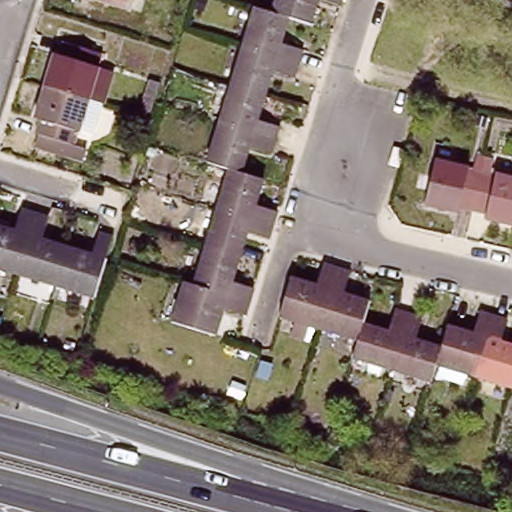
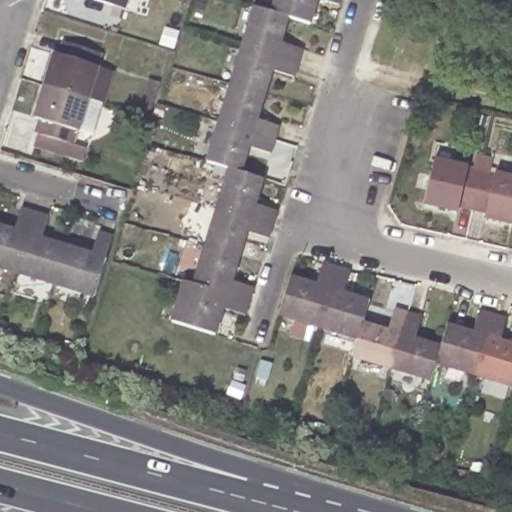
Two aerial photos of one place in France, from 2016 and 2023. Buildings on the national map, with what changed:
unchanged [(91,0),(126,0),(123,10),(91,0)]
unchanged [(313,0),(305,25),(285,19),(266,13),(270,0),(313,0)]
unchanged [(313,0),(337,0),(335,7),(313,0)]
unchanged [(266,13),(285,19),(277,44),(298,50),(289,78),(269,72),(254,120),(275,127),(266,154),(246,148),(237,173),(224,169),(203,163),(250,9),(266,13)]
unchanged [(99,53),(95,67),(98,68),(90,94),(46,81),(54,55),(59,56),(64,42),(99,53)]
unchanged [(37,142),(41,128),(37,127),(41,113),(36,111),(46,81),(90,94),(105,99),(96,128),(79,123),(77,124),(73,138),(69,151),(37,142)]
unchanged [(468,165),(466,169),(474,171),(478,155),(486,157),(473,211),(458,208),(457,214),(431,207),(442,159),(468,165)]
unchanged [(485,220),(486,215),(473,211),(486,157),(492,159),(488,174),(495,176),(496,171),(512,175),(512,226),(485,220)]
unchanged [(237,173),(259,179),(251,204),(273,211),(264,239),(242,233),(228,280),(250,287),(245,302),(189,285),(224,169),(237,173)]
unchanged [(45,215),(38,236),(87,250),(94,229),(109,233),(90,295),(0,269),(0,225),(10,227),(17,207),(45,215)]
unchanged [(314,283),(320,263),(334,267),(316,327),(278,315),(290,276),(314,283)]
unchanged [(350,272),(344,292),(368,299),(362,321),(356,339),(316,327),(334,267),(350,272)]
unchanged [(245,302),(241,316),(219,309),(210,338),(167,325),(180,283),(189,285),(245,302)]
unchanged [(386,329),(393,307),(407,312),(390,368),(351,356),(356,339),(362,321),(386,329)]
unchanged [(438,346),(433,362),(427,380),(390,368),(407,312),(419,315),(412,337),(438,346)]
unchanged [(470,331),(477,312),(489,316),(470,374),(433,362),(438,346),(446,323),(470,331)]
unchanged [(511,387),(470,374),(489,316),(504,320),(497,338),(512,343),(512,382),(511,387)]
unchanged [(512,382),(512,387),(511,387),(512,382)]

